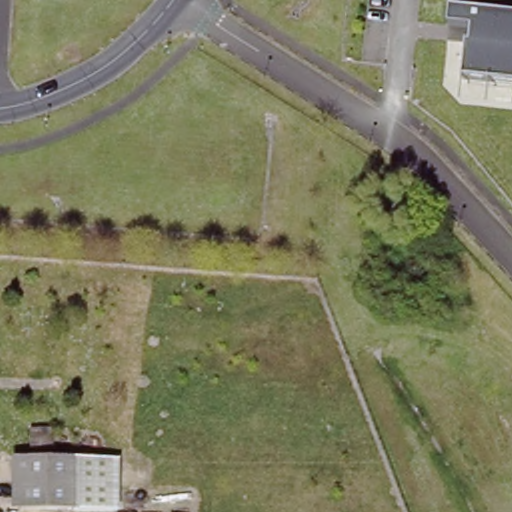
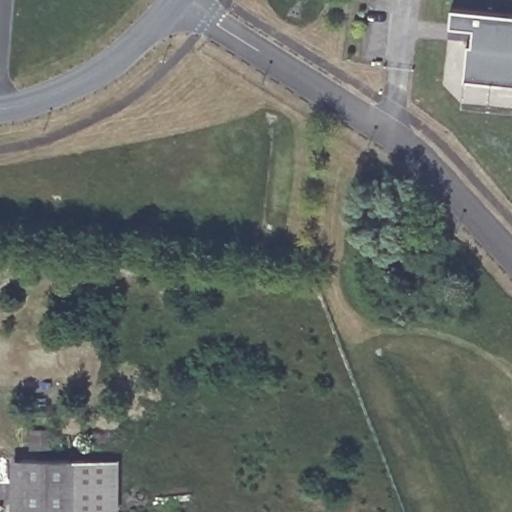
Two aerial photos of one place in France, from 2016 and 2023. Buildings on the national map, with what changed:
unchanged [(473,26),(449,24),(451,6),(512,12),(512,80),(464,75),(467,42),(473,42),(473,26)]
unchanged [(118,457),(118,510),(10,511),(10,458),(118,457)]

